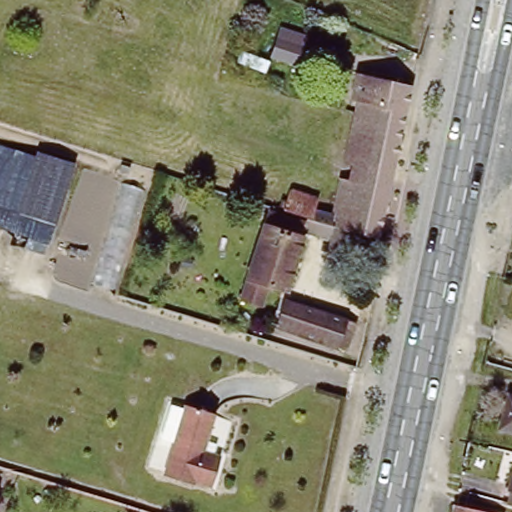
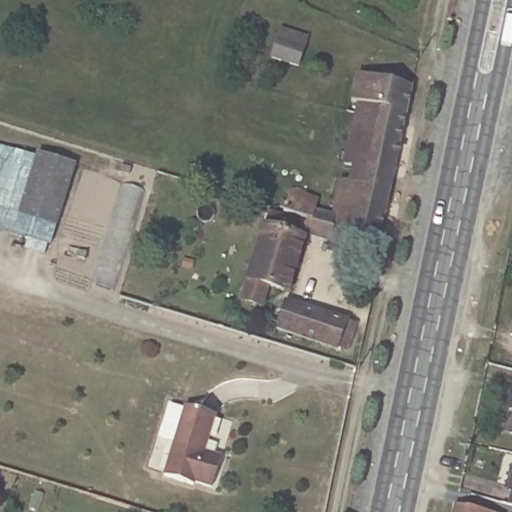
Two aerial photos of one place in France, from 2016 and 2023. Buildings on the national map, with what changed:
unchanged [(259,26),(287,35),(284,51),(283,55),(256,46),(257,41),(259,26)]
unchanged [(357,110),(359,97),(354,96),(359,74),(417,86),(414,124),(357,110)]
unchanged [(343,181),(357,110),(414,124),(399,195),(343,181)]
unchanged [(56,227),(46,255),(26,250),(28,240),(0,230),(0,146),(39,157),(23,215),(56,227)]
unchanged [(56,227),(23,215),(39,157),(41,149),(75,160),(56,227)]
unchanged [(268,286),(261,308),(241,301),(268,212),(279,215),(284,194),(318,201),(314,214),(336,219),(343,181),(399,195),(388,249),(356,239),(349,263),(334,259),(339,234),(334,232),(329,246),(306,239),(289,295),(268,286)]
unchanged [(349,322),(343,350),(278,330),(287,301),(349,322)]
unchanged [(211,447),(218,448),(211,476),(194,472),(193,475),(163,466),(173,432),(161,429),(168,403),(170,394),(183,398),(184,395),(214,404),(211,417),(206,432),(214,435),(211,447)]
unchanged [(507,427),(512,401),(512,428),(507,427)]
unchanged [(509,506),(512,490),(512,507),(509,506)]
unchanged [(494,512),(444,512),(446,500),(494,512)]

